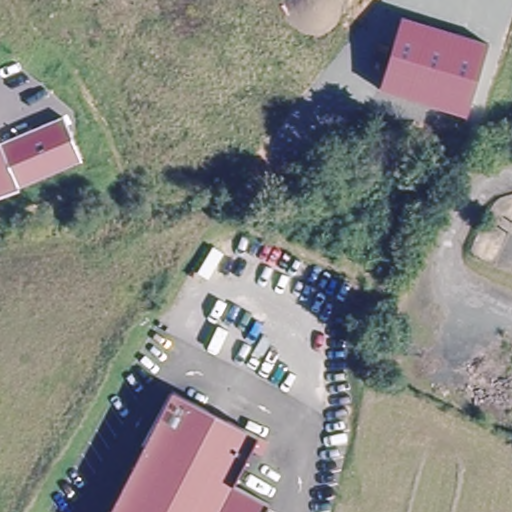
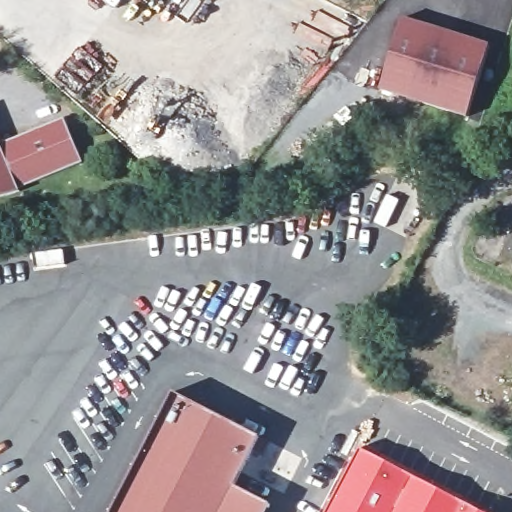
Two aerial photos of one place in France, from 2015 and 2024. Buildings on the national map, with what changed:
unchanged [(491,44),(468,117),(380,91),(404,16),(491,44)]
unchanged [(64,116),(82,162),(18,187),(21,191),(0,196),(0,142),(64,116)]
unchanged [(270,442),(262,458),(251,453),(233,488),(272,507),(270,512),(111,512),(171,393),(270,442)]
new [(327,512),(360,449),(480,512),(327,512)]

